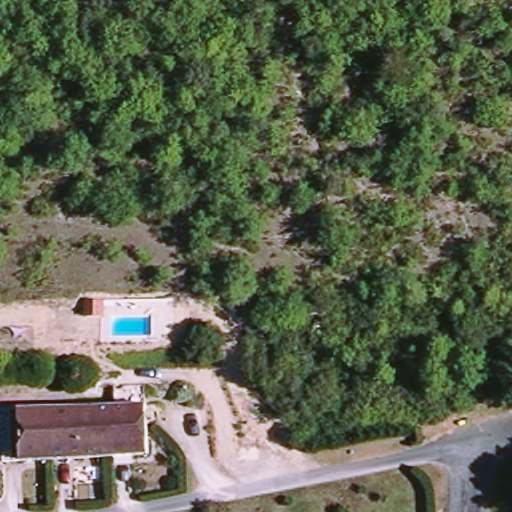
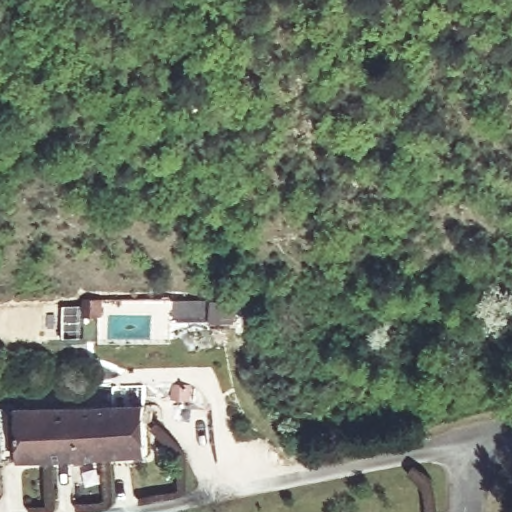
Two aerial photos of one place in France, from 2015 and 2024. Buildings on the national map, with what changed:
unchanged [(345,260),(347,283),(330,285),(327,262),(345,260)]
unchanged [(180,404),(161,405),(160,386),(178,386),(180,404)]
unchanged [(148,400),(152,450),(10,462),(6,412),(148,400)]

